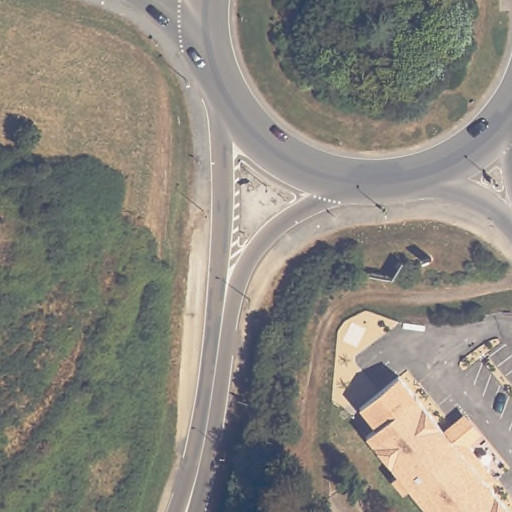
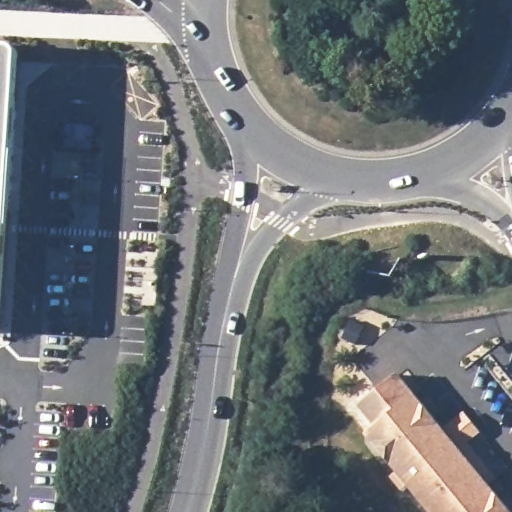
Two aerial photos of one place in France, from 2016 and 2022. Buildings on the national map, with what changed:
new [(12,45),(19,49),(21,55),(2,328),(0,330),(0,45),(12,45)]
unchanged [(412,487),(401,473),(407,468),(376,430),(386,422),(370,402),(408,370),(425,390),(457,430),(465,424),(474,435),(506,475),(498,481),(512,498),(512,512),(442,512),(418,482),(412,487)]

